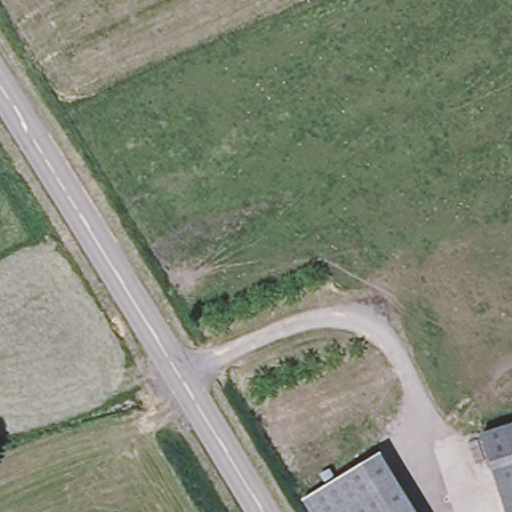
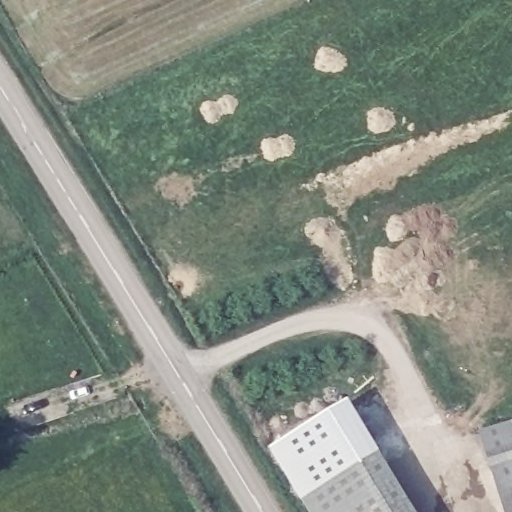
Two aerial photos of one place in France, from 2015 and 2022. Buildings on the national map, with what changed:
new [(302,500),(269,444),(348,392),(378,454),(302,500)]
unchanged [(506,512),(482,433),(486,431),(512,423),(512,512),(506,512)]
unchanged [(414,512),(309,512),(302,500),(378,454),(414,512)]

